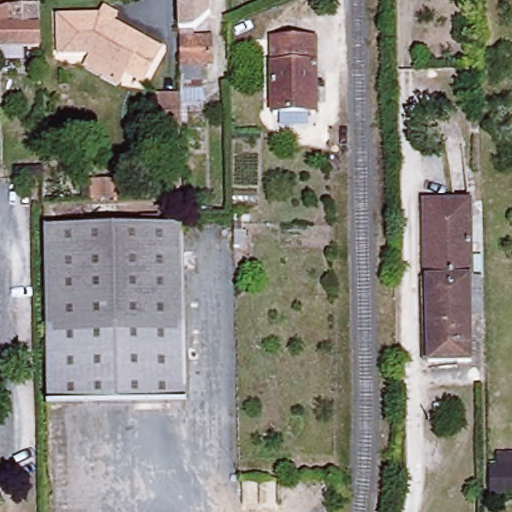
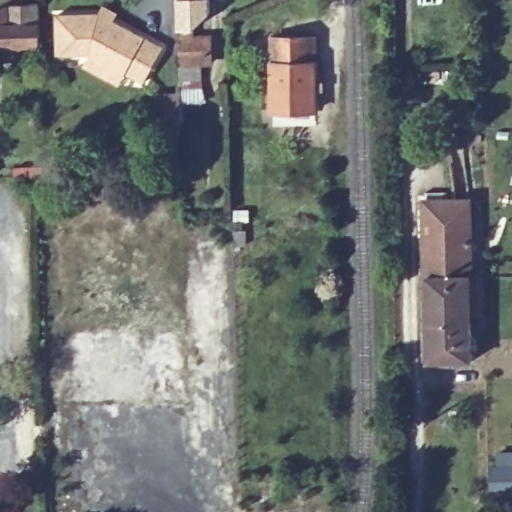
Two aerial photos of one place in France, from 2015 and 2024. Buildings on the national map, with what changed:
unchanged [(7,12),(37,8),(38,50),(0,50),(0,15),(7,12)]
unchanged [(82,68),(87,59),(56,59),(55,18),(97,17),(101,11),(114,18),(110,24),(160,50),(141,86),(123,77),(118,87),(82,68)]
unchanged [(179,77),(179,62),(179,36),(209,36),(209,60),(198,61),(199,77),(179,77)]
unchanged [(314,37),(316,110),(272,111),(271,37),(314,37)]
unchanged [(426,206),(471,205),(471,277),(427,277),(426,206)]
demolished [(44,228),(187,226),(187,234),(187,391),(187,403),(47,407),(44,228)]
demolished [(203,235),(204,392),(187,391),(187,234),(203,235)]
unchanged [(471,277),(472,362),(428,363),(427,277),(471,277)]
unchanged [(487,467),(496,467),(496,453),(512,453),(512,496),(485,495),(487,467)]

